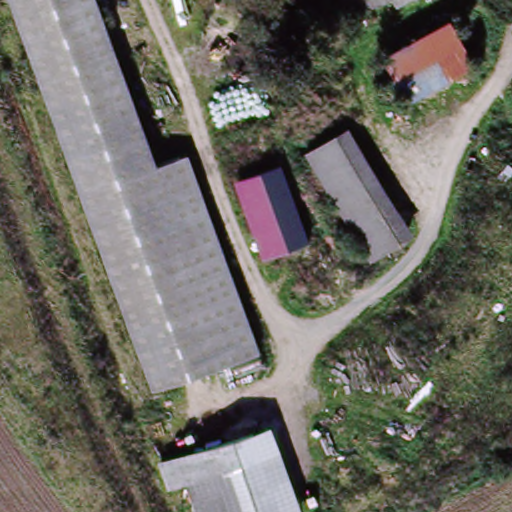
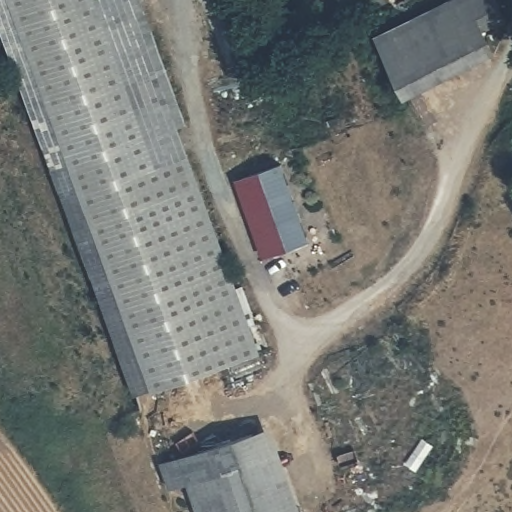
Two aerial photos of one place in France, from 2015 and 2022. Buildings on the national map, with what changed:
unchanged [(134,0),(189,155),(260,355),(151,393),(10,0),(134,0)]
unchanged [(336,0),(300,13),(296,0),(336,0)]
unchanged [(347,21),(339,0),(394,0),(395,4),(347,21)]
unchanged [(403,0),(396,4),(395,4),(394,0),(403,0)]
unchanged [(376,55),(448,17),(472,67),(402,104),(376,55)]
demolished [(354,124),(419,235),(363,265),(296,156),(354,124)]
unchanged [(235,179),(283,164),(308,241),(262,257),(235,179)]
unchanged [(158,464),(271,426),(301,512),(199,512),(189,483),(166,491),(158,464)]

